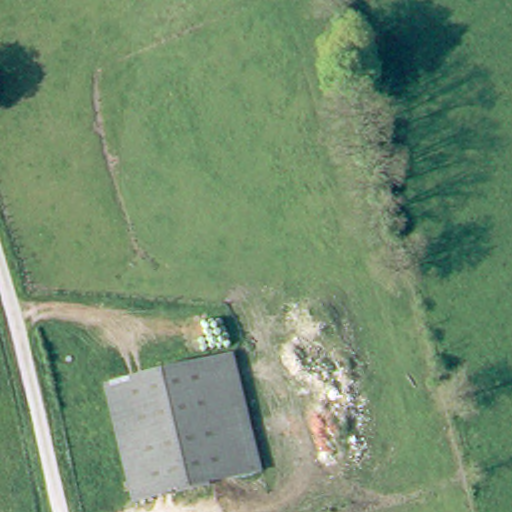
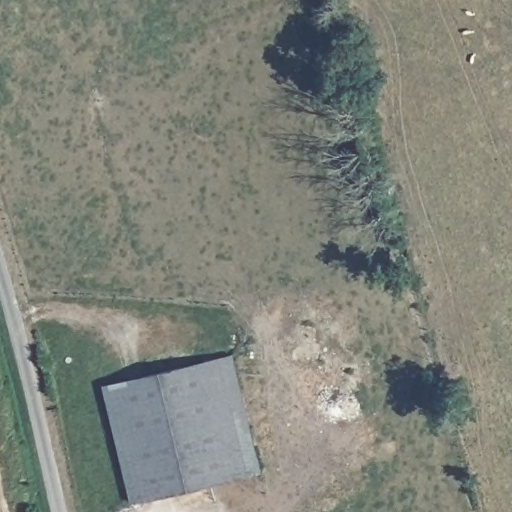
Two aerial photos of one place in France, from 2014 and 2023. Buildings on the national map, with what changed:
unchanged [(266,469),(141,500),(112,384),(237,353),(266,469)]

